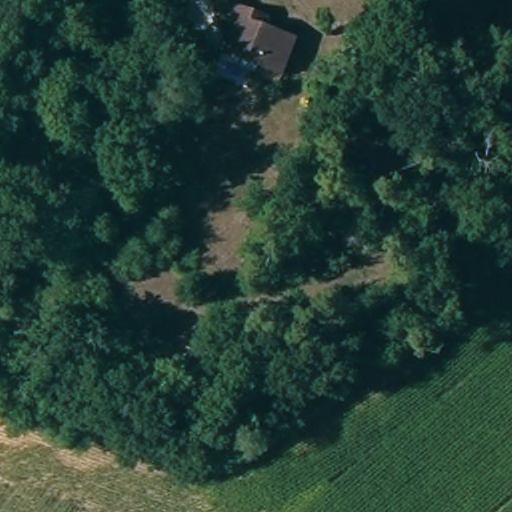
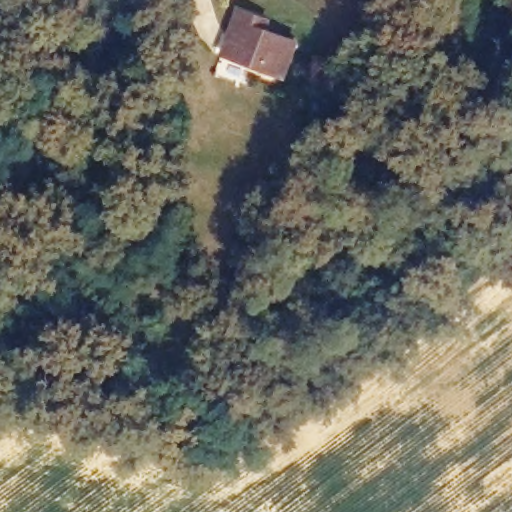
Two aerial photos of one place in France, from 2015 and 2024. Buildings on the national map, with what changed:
unchanged [(274,19),(272,25),(303,42),(282,78),(230,46),(241,28),(234,23),(246,3),(274,19)]

